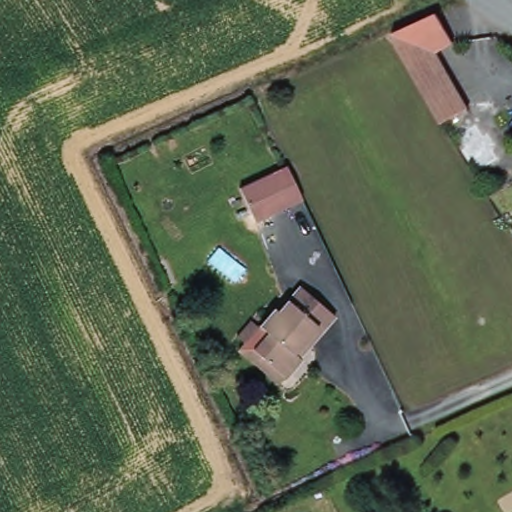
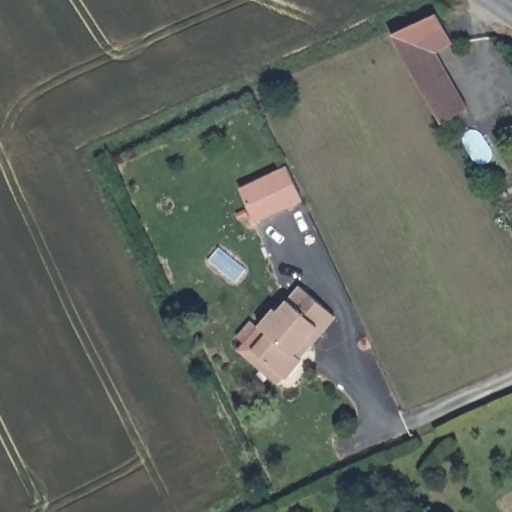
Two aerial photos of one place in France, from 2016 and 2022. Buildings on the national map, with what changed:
unchanged [(421,90),(391,30),(436,9),(452,39),(435,49),(464,106),(438,120),(421,90)]
unchanged [(302,202),(255,223),(240,191),(288,168),(302,202)]
unchanged [(240,348),(248,340),(240,332),(255,316),(262,322),(274,306),(278,309),(299,283),(318,299),(336,315),(312,345),(306,341),(297,352),(303,357),(288,373),(280,383),(240,348)]

